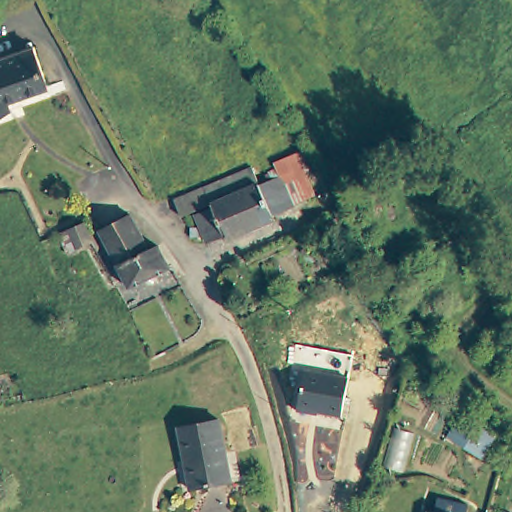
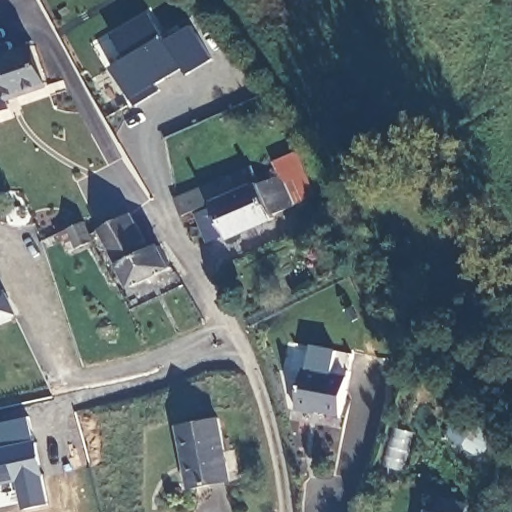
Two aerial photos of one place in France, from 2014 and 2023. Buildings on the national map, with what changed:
new [(110,68),(126,58),(113,34),(150,11),(184,69),(131,102),(110,68)]
unchanged [(47,86),(7,100),(10,109),(0,112),(0,58),(34,46),(47,86)]
unchanged [(190,218),(199,211),(186,217),(179,200),(209,187),(215,185),(257,166),(257,168),(261,176),(265,185),(285,177),(283,170),(280,163),(302,153),(320,195),(277,215),(278,218),(230,239),(229,236),(210,243),(205,224),(195,228),(190,218)]
unchanged [(129,288),(99,230),(130,214),(149,250),(158,246),(170,268),(129,288)]
unchanged [(92,241),(66,253),(59,233),(84,222),(92,241)]
new [(15,316),(0,323),(0,294),(5,292),(15,316)]
unchanged [(313,413),(299,411),(301,400),(295,399),(298,381),(291,380),(298,345),(355,355),(350,378),(343,416),(314,411),(313,413)]
unchanged [(460,415),(495,436),(481,458),(445,437),(460,415)]
new [(0,456),(0,424),(29,418),(49,512),(25,512),(21,495),(0,499),(0,465),(2,465),(0,456)]
unchanged [(179,426),(219,419),(231,482),(191,489),(179,426)]
unchanged [(451,503),(471,508),(470,512),(449,512),(451,503)]
unchanged [(430,511),(434,512),(429,512),(430,511)]

